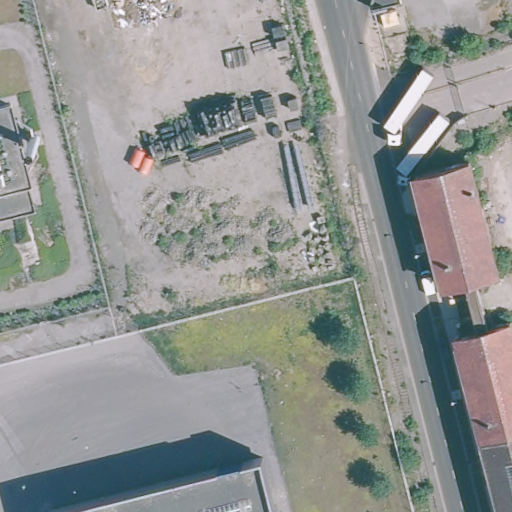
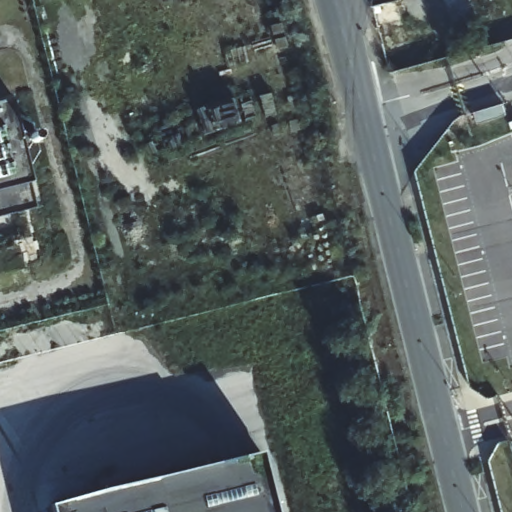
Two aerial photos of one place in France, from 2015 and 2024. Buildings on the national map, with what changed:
unchanged [(0,216),(0,99),(12,96),(33,177),(40,206),(0,216)]
demolished [(497,276),(455,287),(451,273),(441,275),(413,164),(464,152),(497,276)]
demolished [(464,332),(462,319),(501,309),(512,351),(512,512),(500,512),(454,334),(464,332)]
unchanged [(53,512),(51,506),(264,453),(278,512),(53,512)]

